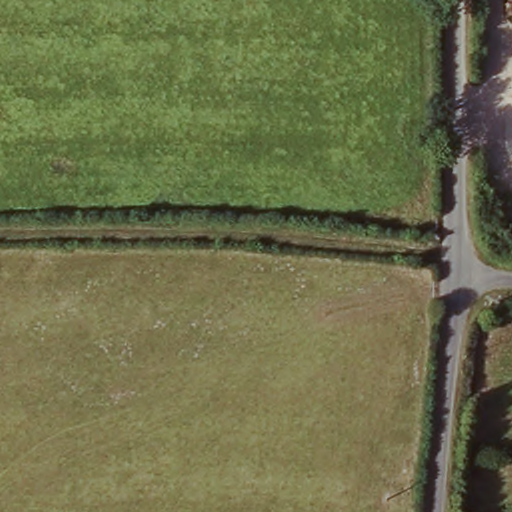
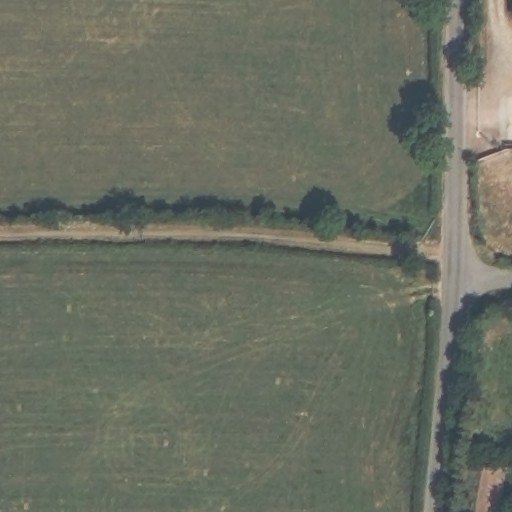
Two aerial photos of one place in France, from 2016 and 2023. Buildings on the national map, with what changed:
[]

